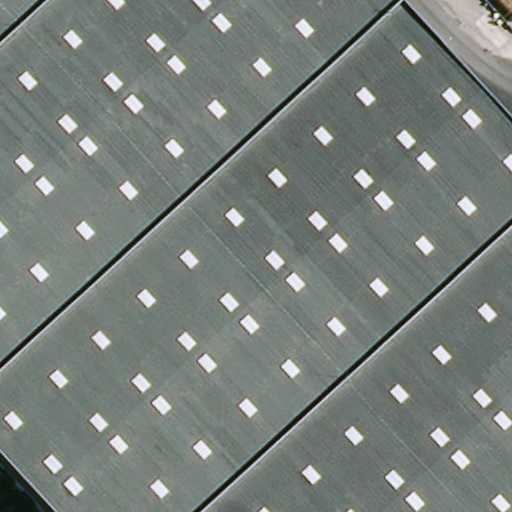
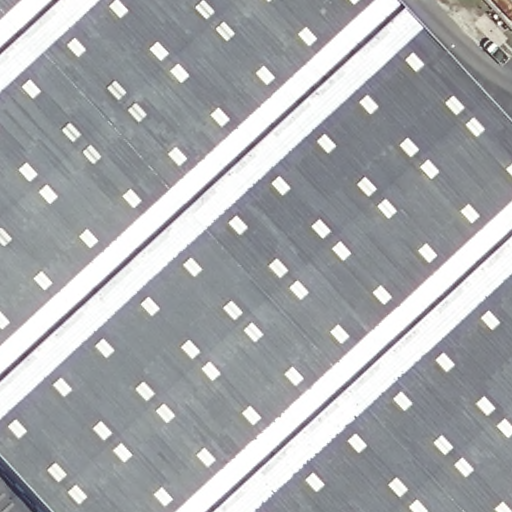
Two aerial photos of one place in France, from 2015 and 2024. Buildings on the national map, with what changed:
unchanged [(0,0),(389,0),(512,134),(512,512),(37,512),(0,471),(0,0)]

